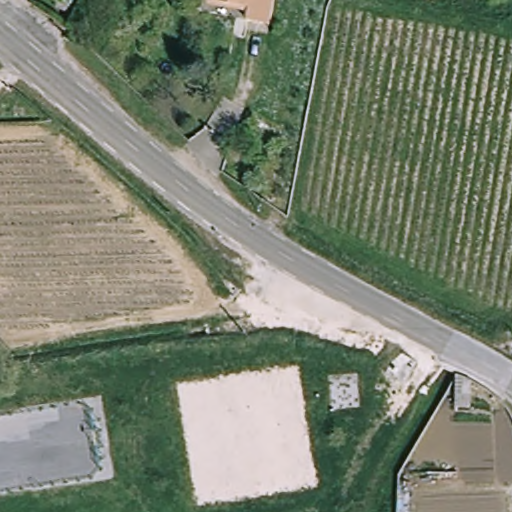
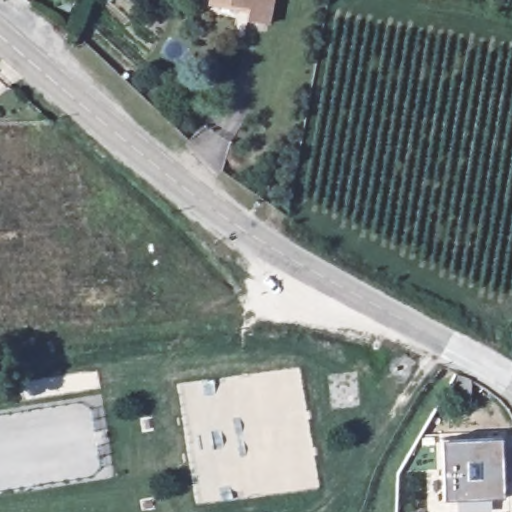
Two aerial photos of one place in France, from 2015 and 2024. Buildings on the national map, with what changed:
unchanged [(248,5),(249,0),(275,0),(273,10),(248,5)]
unchanged [(475,379),(476,407),(456,407),(459,374),(475,379)]
new [(447,440),(507,437),(509,499),(447,502),(447,440)]

